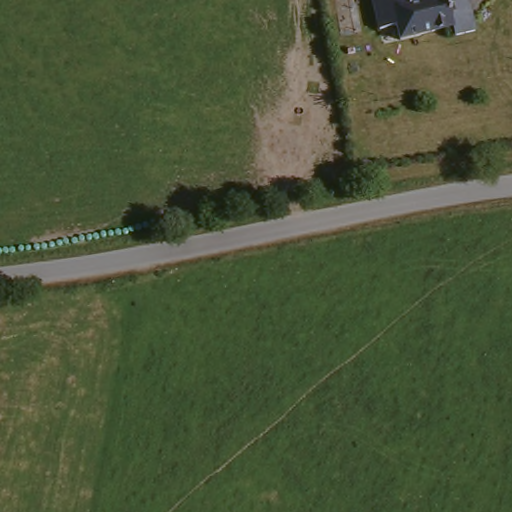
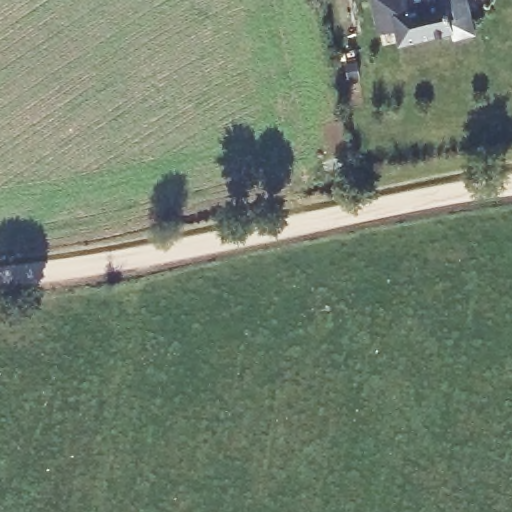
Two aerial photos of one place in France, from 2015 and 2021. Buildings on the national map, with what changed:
unchanged [(373,0),(472,0),(478,22),(454,29),(451,19),(400,33),(397,21),(380,26),(373,0)]

